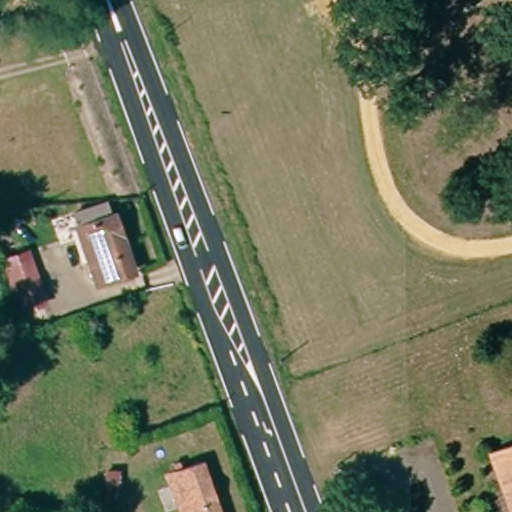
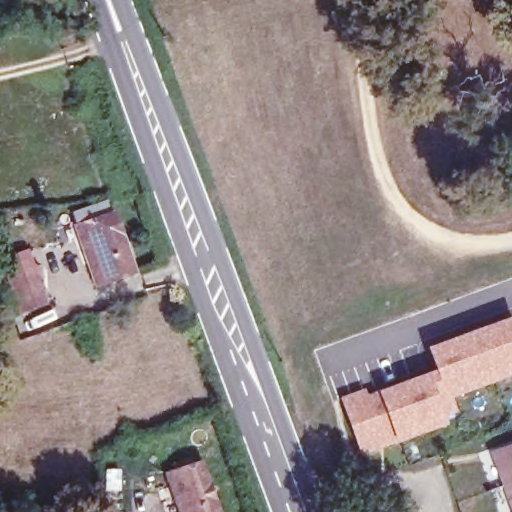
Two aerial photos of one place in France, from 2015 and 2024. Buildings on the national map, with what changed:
unchanged [(83,218),(116,207),(121,220),(124,218),(145,276),(108,289),(83,218)]
unchanged [(22,307),(27,305),(11,260),(36,251),(54,303),(24,313),(22,307)]
new [(368,394),(378,390),(436,369),(426,347),(512,315),(512,374),(452,396),(457,412),(446,416),(449,424),(400,440),(361,452),(340,397),(364,388),(368,394)]
unchanged [(500,448),(512,444),(512,485),(500,448)]
unchanged [(206,463),(222,512),(185,512),(173,474),(206,463)]
unchanged [(120,472),(118,510),(106,509),(108,471),(120,472)]

